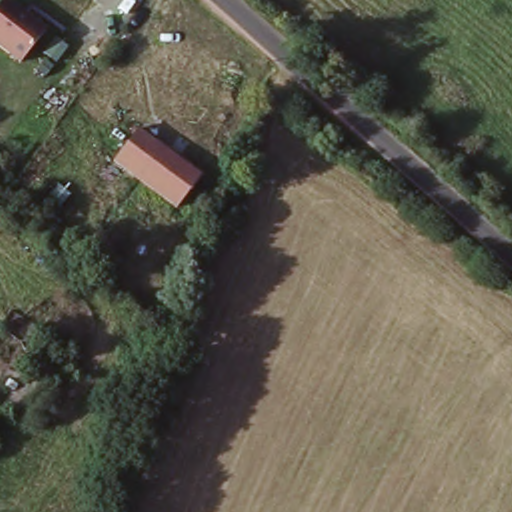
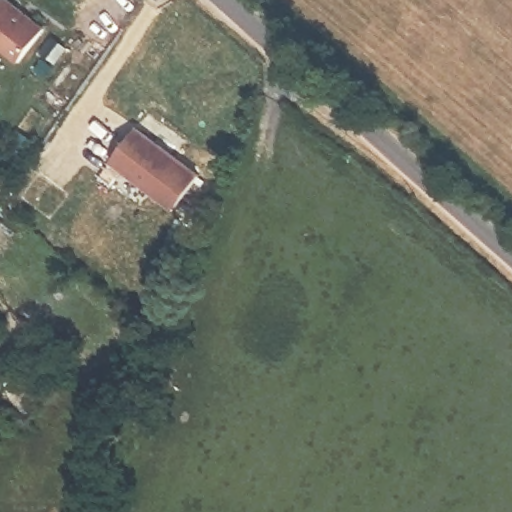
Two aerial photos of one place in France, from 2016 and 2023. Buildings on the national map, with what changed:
unchanged [(21,64),(0,48),(0,6),(6,0),(14,0),(48,28),(21,64)]
unchanged [(137,125),(201,173),(175,207),(110,161),(137,125)]

